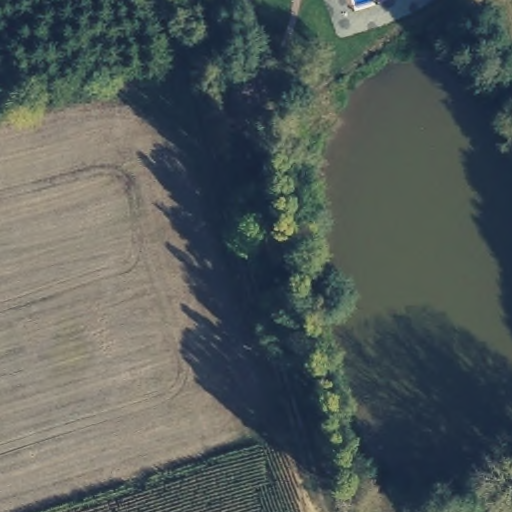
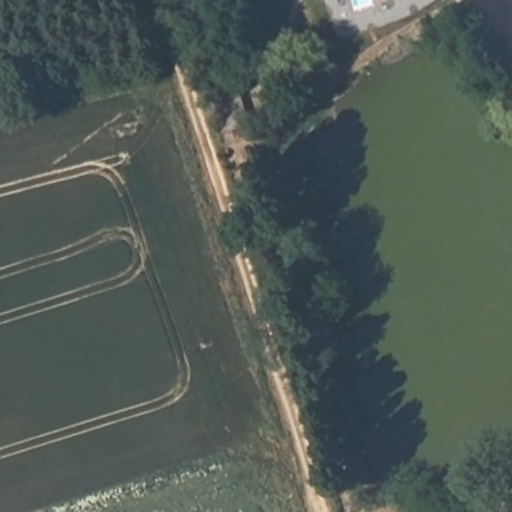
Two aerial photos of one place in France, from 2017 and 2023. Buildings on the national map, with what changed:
unchanged [(235,68),(248,110),(230,115),(217,74),(235,68)]

